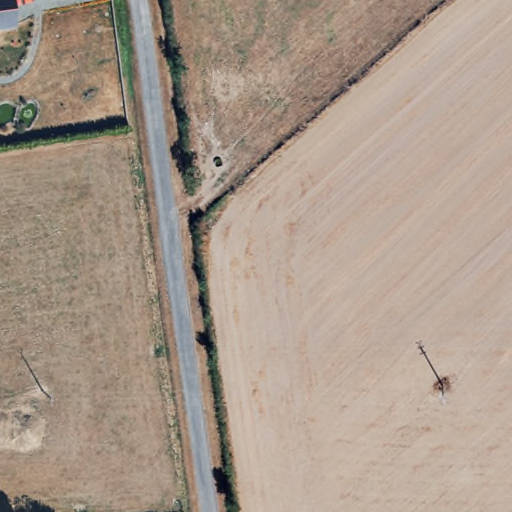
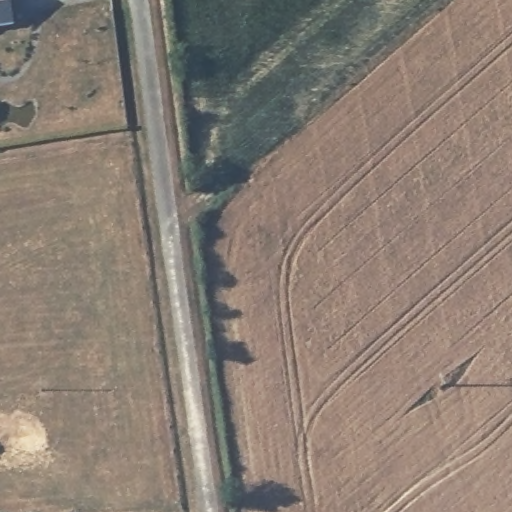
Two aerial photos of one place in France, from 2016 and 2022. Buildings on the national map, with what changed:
unchanged [(0,28),(0,0),(10,0),(14,26),(0,28)]

